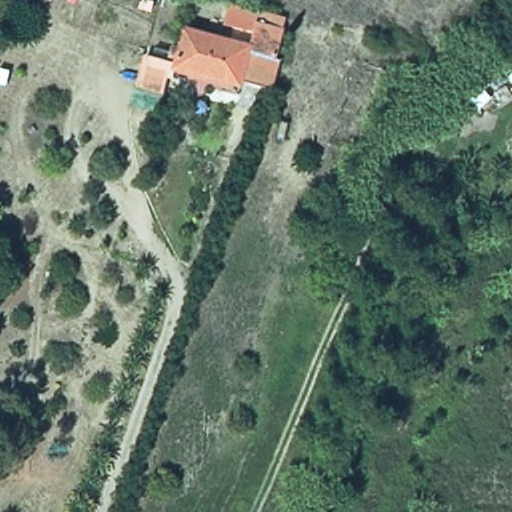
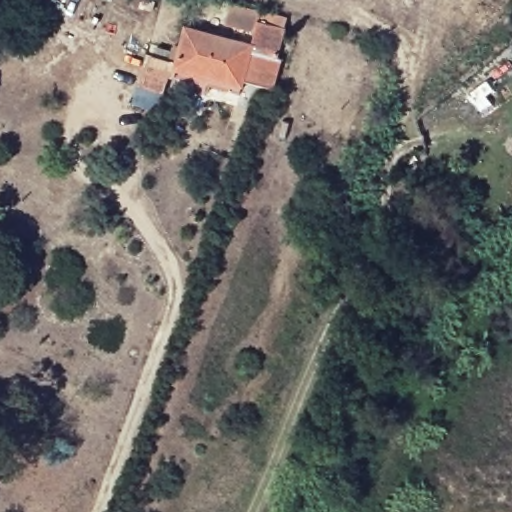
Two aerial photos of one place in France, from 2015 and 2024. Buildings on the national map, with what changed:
unchanged [(230,7),(230,8),(262,15),(258,26),(287,33),(278,62),(282,63),(273,94),(245,87),(243,94),(172,74),(184,30),(252,48),(255,37),(225,29),(227,20),(216,18),(220,4),(230,7)]

